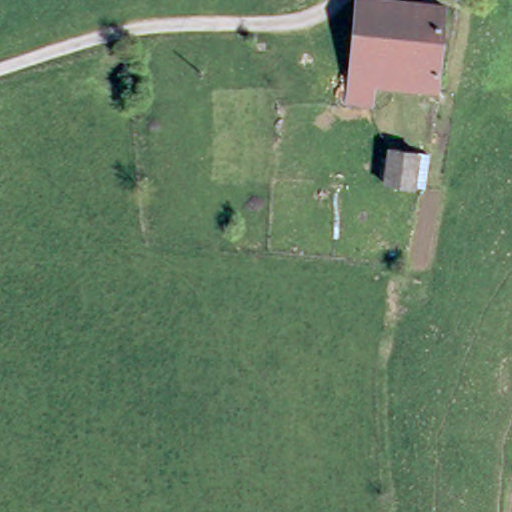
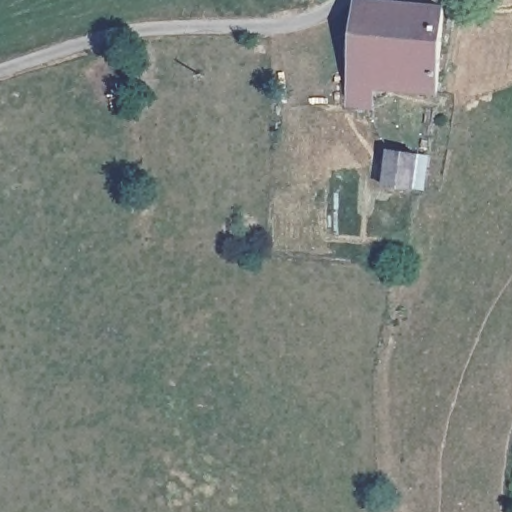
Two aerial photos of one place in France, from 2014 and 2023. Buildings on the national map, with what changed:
unchanged [(449,12),(443,97),(376,93),(376,109),(353,109),(362,1),(449,12)]
unchanged [(384,166),(413,169),(408,217),(392,216),(392,198),(380,197),(384,166)]

